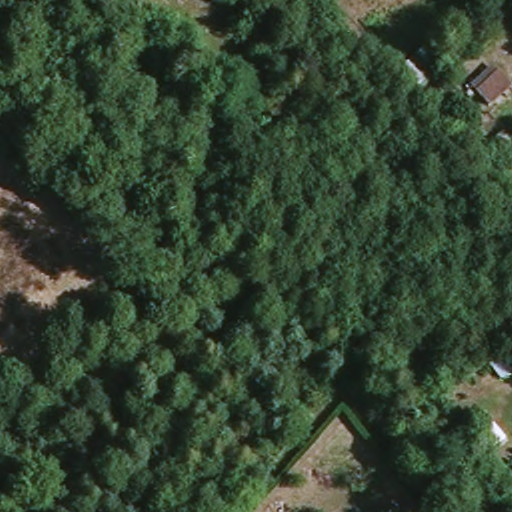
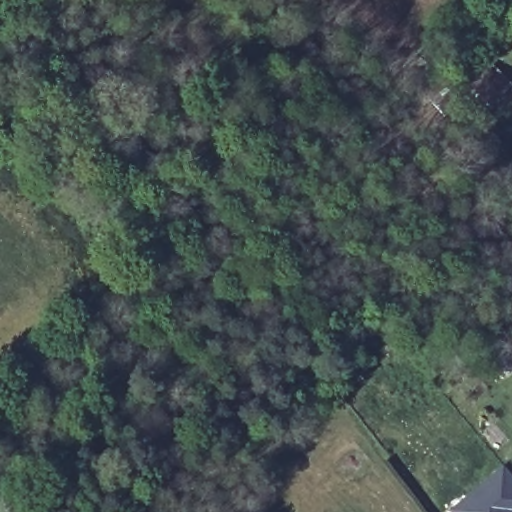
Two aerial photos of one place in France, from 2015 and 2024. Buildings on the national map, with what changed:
new [(502,464),(512,475),(512,512),(450,512),(447,510),(502,464)]

